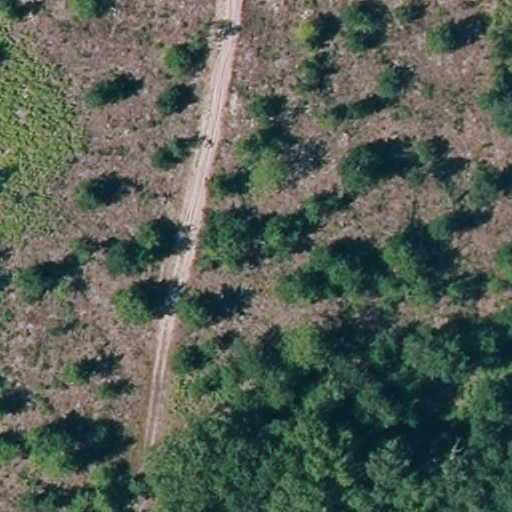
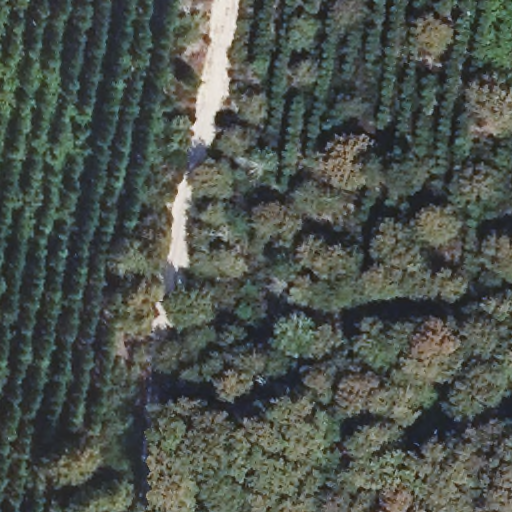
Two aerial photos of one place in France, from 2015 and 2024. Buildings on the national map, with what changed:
[]

